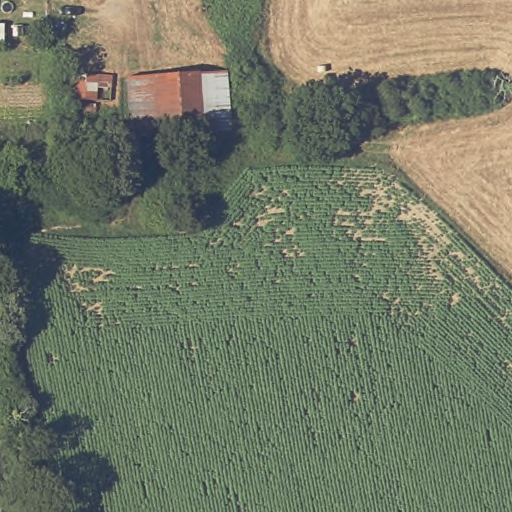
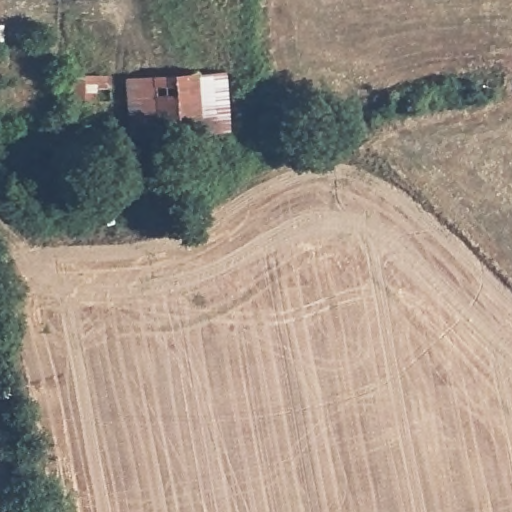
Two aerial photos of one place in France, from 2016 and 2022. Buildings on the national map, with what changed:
unchanged [(3,26),(3,46),(0,46),(0,26),(3,26)]
unchanged [(167,137),(161,76),(221,73),(225,134),(167,137)]
unchanged [(111,77),(111,90),(96,90),(95,103),(73,101),(74,76),(111,77)]

